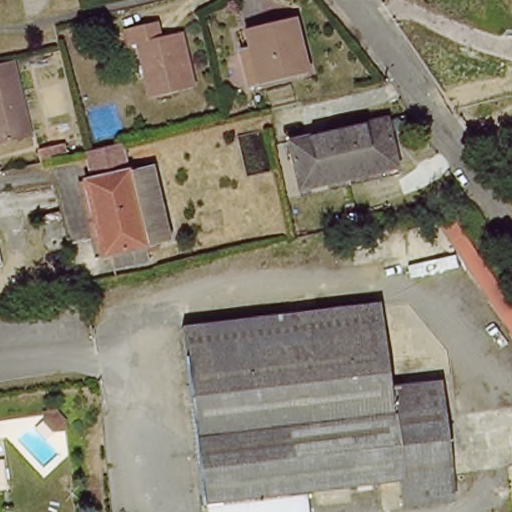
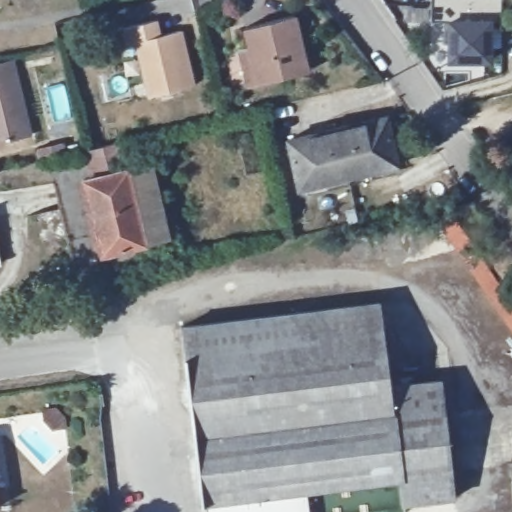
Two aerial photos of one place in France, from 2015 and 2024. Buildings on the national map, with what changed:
new [(433,0),(503,0),(503,7),(433,7),(433,0)]
new [(503,7),(503,23),(493,23),(493,22),(452,22),(433,22),(433,7),(503,7)]
unchanged [(243,47),(255,44),(250,24),(301,12),(316,72),(265,84),(254,87),(243,47)]
unchanged [(160,22),(164,37),(185,32),(198,85),(156,95),(143,41),(128,44),(125,30),(160,22)]
new [(452,22),(493,22),(493,62),(452,61),(452,23),(452,22)]
unchanged [(12,63),(29,137),(0,144),(0,66),(12,63)]
unchanged [(392,118),(402,167),(309,188),(294,140),(392,118)]
unchanged [(105,270),(102,257),(84,179),(91,177),(84,150),(124,141),(130,169),(152,163),(170,241),(145,247),(148,261),(105,270)]
unchanged [(455,212),(512,297),(512,328),(439,219),(455,212)]
unchanged [(184,324),(383,300),(389,350),(190,374),(184,324)]
unchanged [(389,350),(393,383),(444,377),(458,487),(407,494),(403,468),(305,483),(205,495),(190,374),(389,350)]
unchanged [(308,512),(207,512),(205,495),(305,483),(308,512)]

